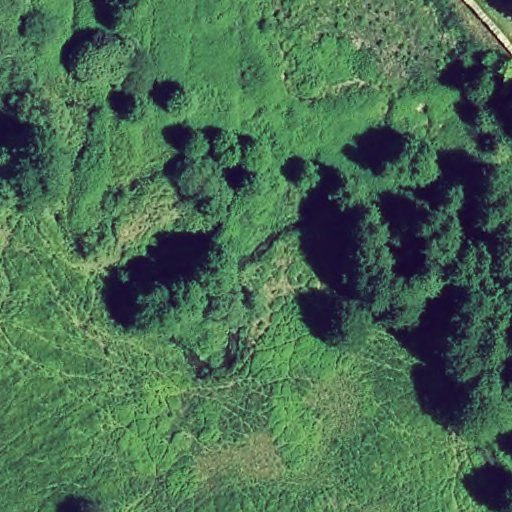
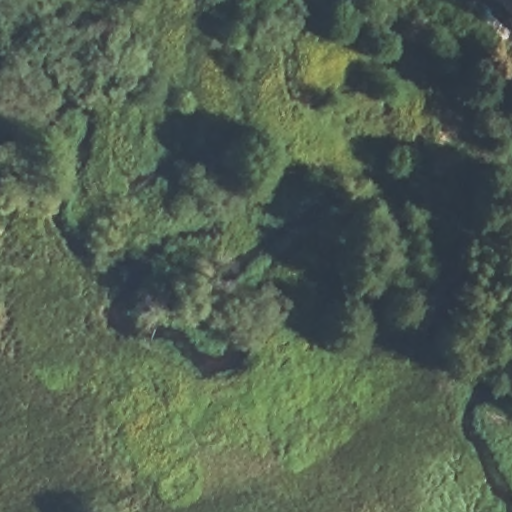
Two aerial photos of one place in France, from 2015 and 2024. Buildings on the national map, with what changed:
unchanged [(480,170),(488,197),(474,201),(465,175),(480,170)]

